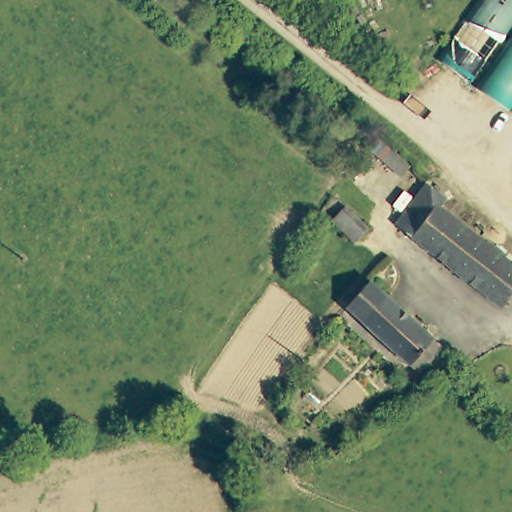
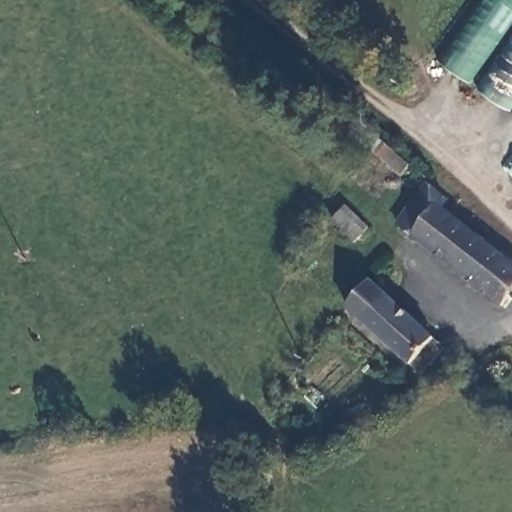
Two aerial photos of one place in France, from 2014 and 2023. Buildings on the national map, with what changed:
unchanged [(441,59),(482,0),(512,0),(512,25),(474,81),(441,59)]
unchanged [(512,40),(512,107),(481,86),(512,40)]
unchanged [(410,165),(400,177),(368,149),(377,138),(410,165)]
unchanged [(448,216),(512,264),(512,314),(511,316),(406,234),(436,194),(454,208),(448,216)]
unchanged [(369,227),(356,243),(331,221),(345,205),(369,227)]
unchanged [(437,338),(416,363),(341,297),(364,271),(437,338)]

